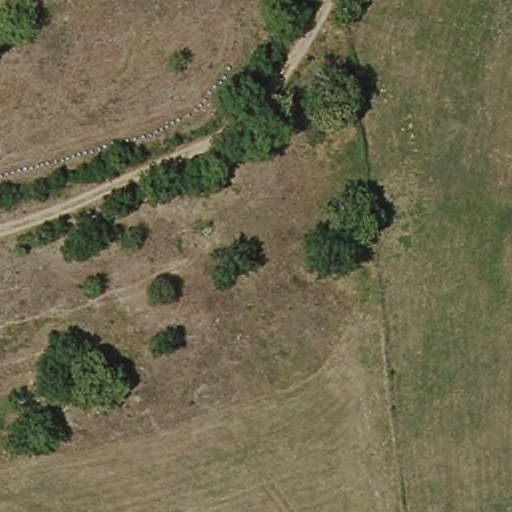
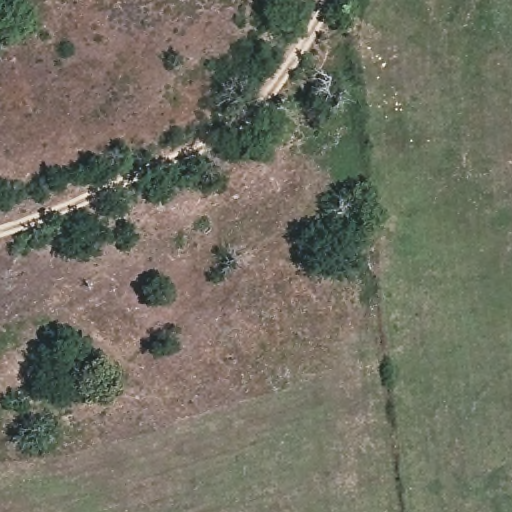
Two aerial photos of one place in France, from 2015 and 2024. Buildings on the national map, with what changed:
[]

